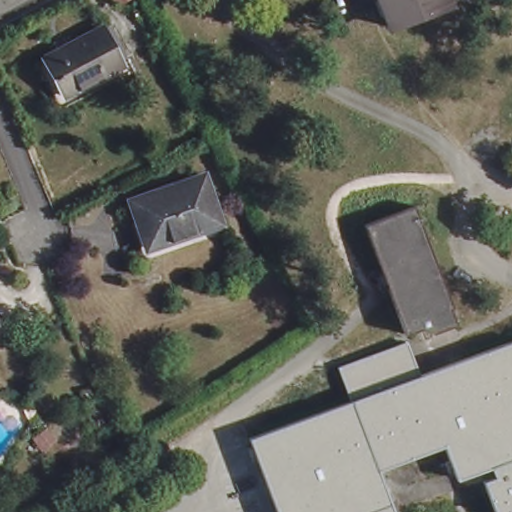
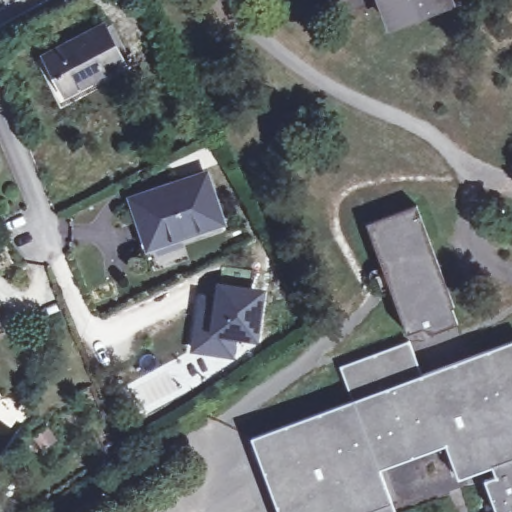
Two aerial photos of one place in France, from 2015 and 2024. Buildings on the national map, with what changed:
unchanged [(375,0),(442,0),(444,6),(385,28),(375,0)]
unchanged [(41,58),(98,28),(117,66),(60,96),(41,58)]
unchanged [(123,200),(196,175),(212,222),(140,247),(123,200)]
unchanged [(361,224),(411,205),(449,306),(447,307),(453,323),(430,331),(420,327),(402,333),(361,224)]
new [(215,294),(218,282),(221,266),(254,271),(251,287),(266,290),(258,342),(237,339),(235,358),(190,352),(196,293),(215,294)]
unchanged [(337,368),(405,342),(417,376),(512,341),(512,512),(504,512),(504,511),(501,512),(492,512),(480,480),(490,476),(486,466),(454,478),(441,445),(375,469),(391,512),(273,512),(246,439),(350,401),(337,368)]

